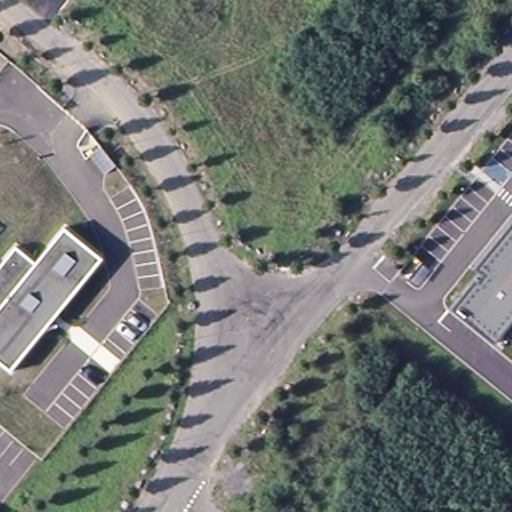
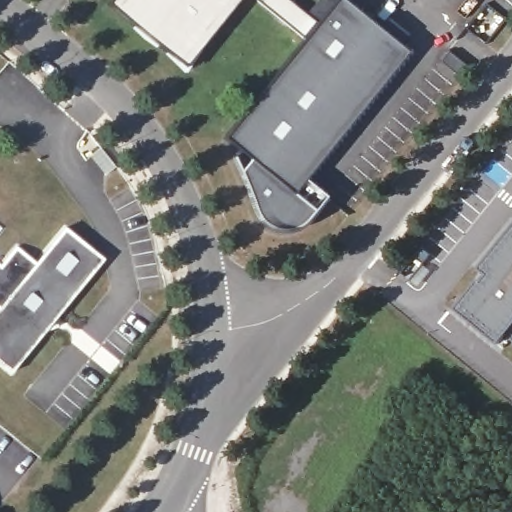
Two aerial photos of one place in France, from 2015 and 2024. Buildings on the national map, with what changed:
new [(110,2),(112,0),(238,0),(185,67),(110,2)]
new [(346,0),(412,54),(307,185),(326,201),(308,226),(289,233),(269,227),(261,215),(256,202),(244,175),(254,164),(227,142),(341,0),(346,0)]
new [(256,0),(287,0),(305,15),(317,0),(333,0),(337,4),(307,42),(256,0)]
unchanged [(508,331),(497,344),(453,309),(477,280),(480,281),(486,275),(477,267),(512,224),(512,340),(508,331)]
unchanged [(16,247),(37,262),(65,227),(104,258),(11,371),(0,361),(0,264),(1,265),(16,247)]

